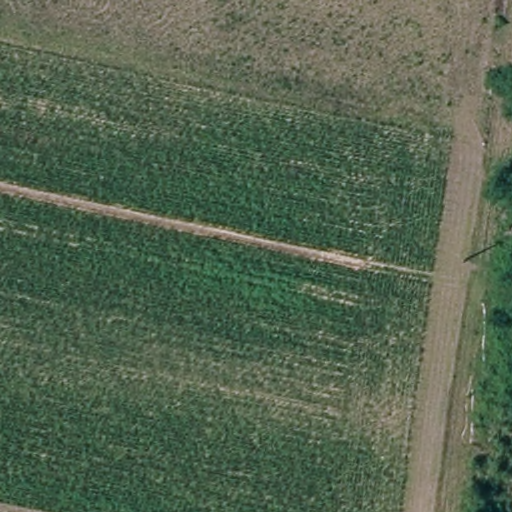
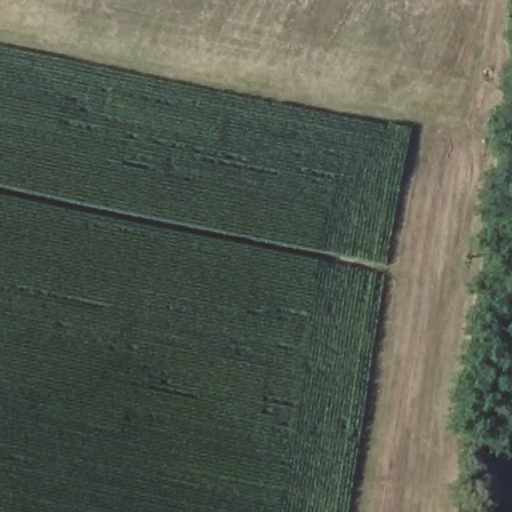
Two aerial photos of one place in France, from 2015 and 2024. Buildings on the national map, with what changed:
[]

